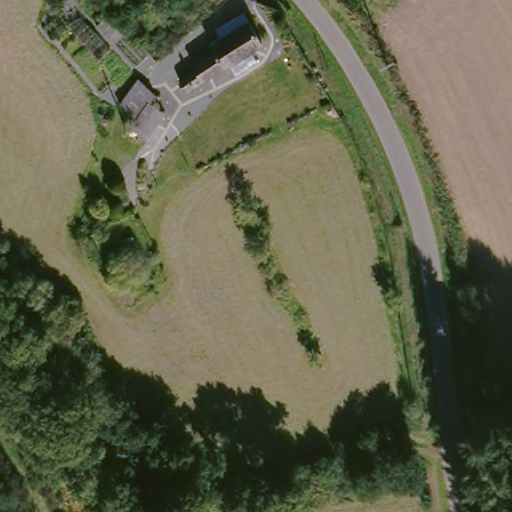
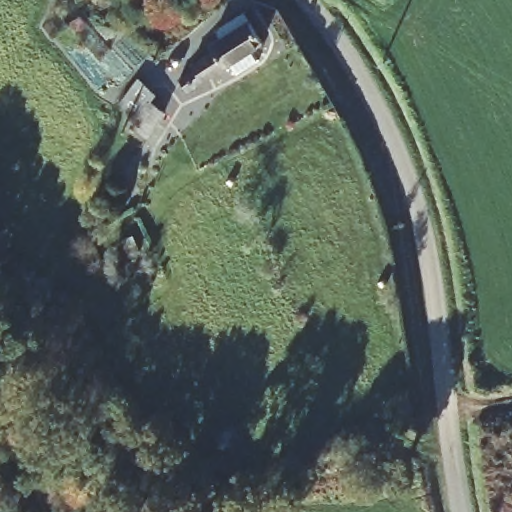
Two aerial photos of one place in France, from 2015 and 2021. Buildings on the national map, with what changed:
unchanged [(182,76),(191,71),(188,68),(208,54),(204,48),(216,40),(223,35),(243,24),(259,49),(238,61),(182,95),(176,86),(184,81),(182,76)]
unchanged [(156,95),(150,109),(161,114),(134,151),(119,143),(130,121),(114,109),(133,82),(156,95)]

